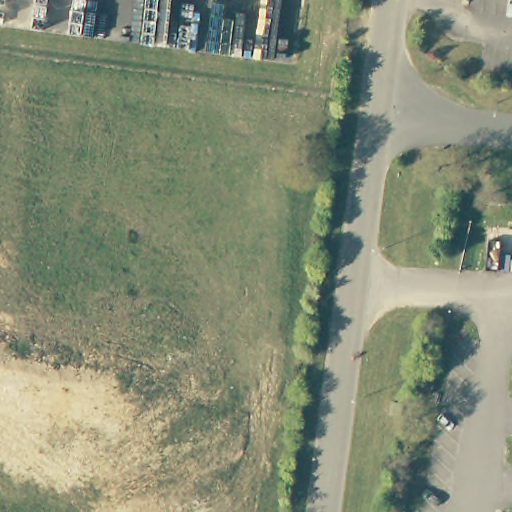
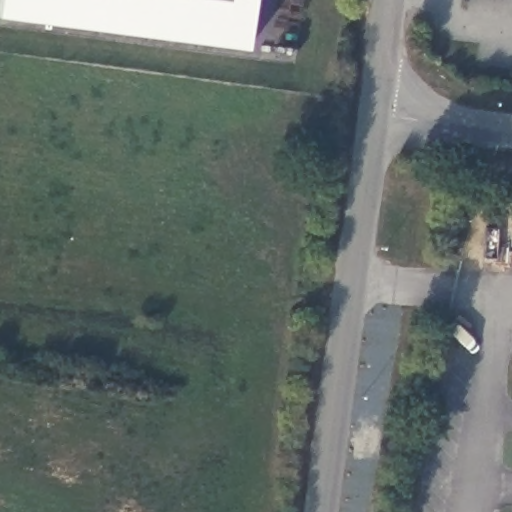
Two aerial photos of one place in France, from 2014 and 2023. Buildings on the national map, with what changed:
new [(0,18),(0,7),(1,0),(255,0),(249,51),(0,18)]

